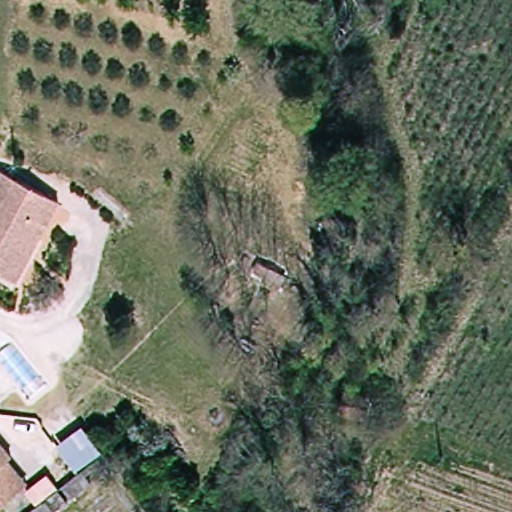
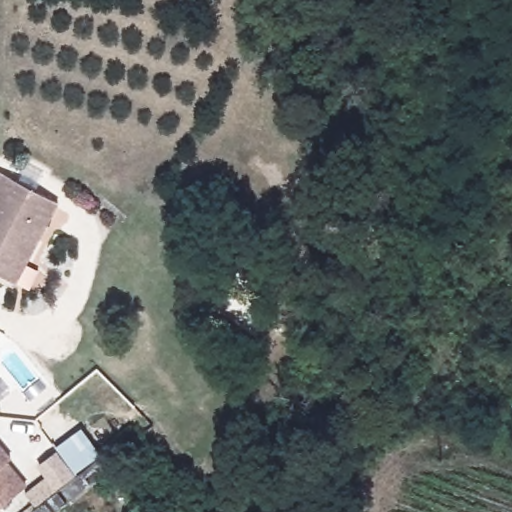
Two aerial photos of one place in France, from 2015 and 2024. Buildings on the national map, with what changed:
unchanged [(3,276),(0,275),(0,172),(59,204),(39,241),(16,283),(3,276)]
unchanged [(370,402),(362,422),(340,415),(348,393),(370,402)]
unchanged [(11,500),(0,509),(0,450),(10,463),(5,466),(23,491),(11,500)]
unchanged [(99,458),(111,475),(103,481),(90,465),(99,458)]
unchanged [(45,473),(56,489),(37,505),(24,490),(45,473)]
unchanged [(80,473),(91,488),(74,503),(62,489),(80,473)]
unchanged [(57,493),(68,508),(62,512),(56,512),(47,500),(57,493)]
unchanged [(45,502),(52,512),(32,512),(45,502)]

